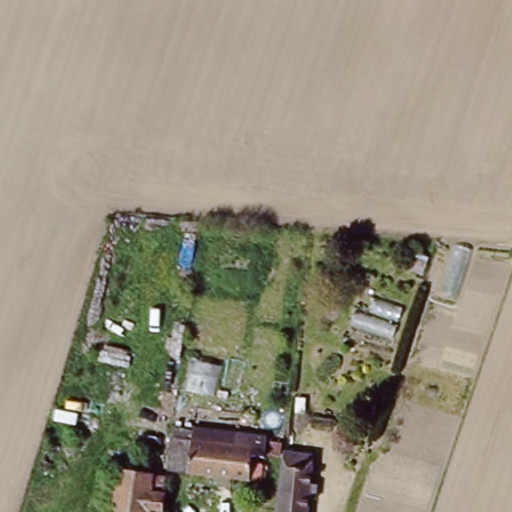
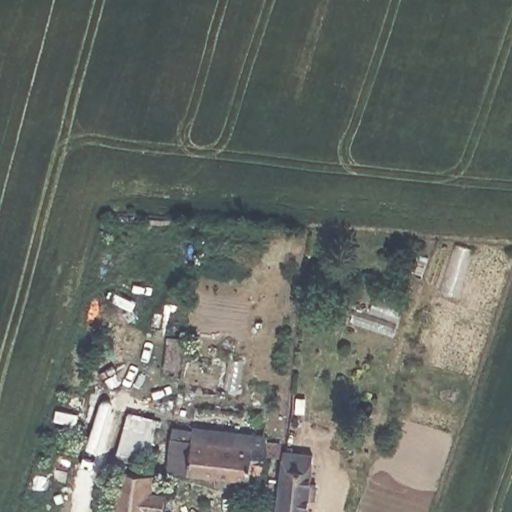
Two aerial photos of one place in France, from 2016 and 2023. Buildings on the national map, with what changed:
unchanged [(169,474),(169,472),(170,460),(184,461),(185,439),(205,441),(207,430),(247,434),(247,438),(260,440),(259,450),(257,461),(245,459),(242,481),(169,474)]
unchanged [(276,451),(305,453),(302,512),(273,512),(276,451)]
unchanged [(109,467),(143,467),(142,493),(155,493),(155,511),(143,511),(143,512),(108,512),(109,467)]

